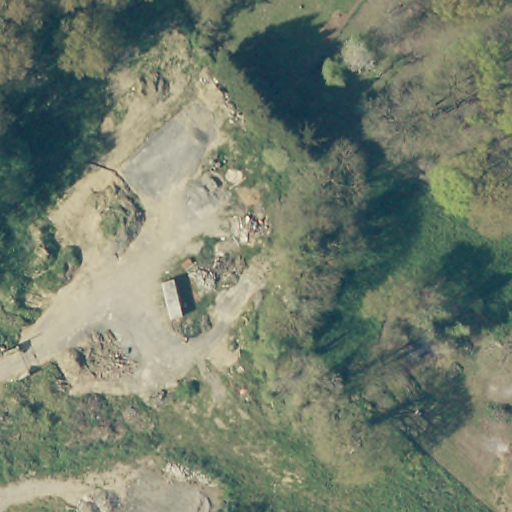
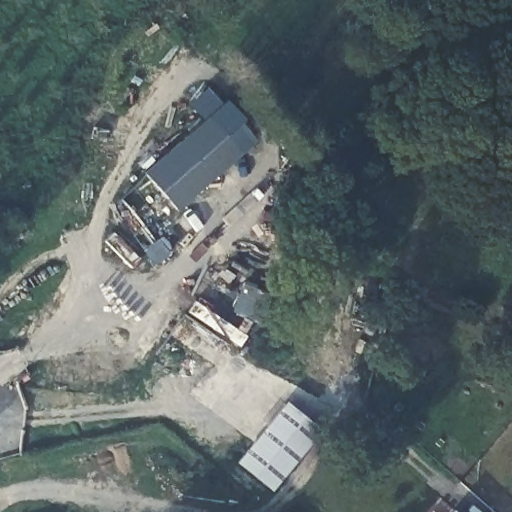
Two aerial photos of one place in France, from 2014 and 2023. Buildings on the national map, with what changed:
new [(223,106),(254,141),(177,207),(145,172),(223,106)]
new [(286,401),(321,429),(273,492),(236,462),(286,401)]
new [(456,507),(462,512),(451,512),(456,507)]

